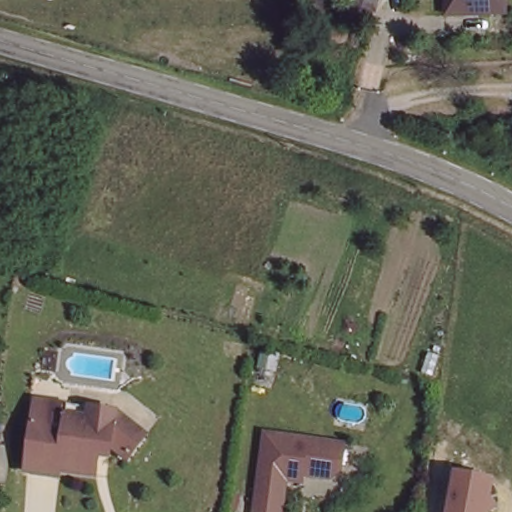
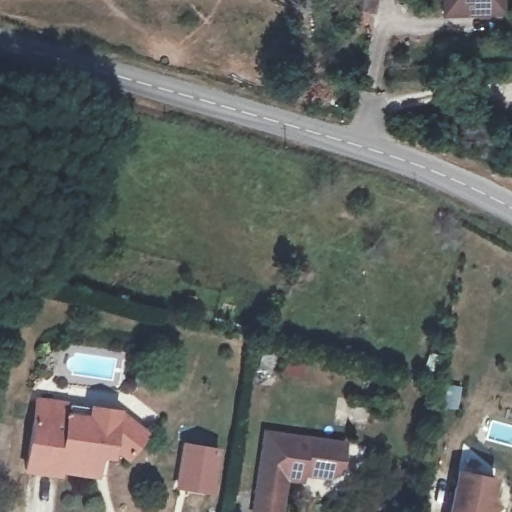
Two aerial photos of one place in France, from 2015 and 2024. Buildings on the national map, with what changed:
unchanged [(444,12),(443,0),(505,0),(505,10),(444,12)]
unchanged [(145,430),(128,455),(113,444),(112,443),(99,443),(97,473),(60,472),(60,475),(26,474),(30,422),(32,401),(64,404),(114,408),(119,412),(145,430)]
unchanged [(340,433),(338,459),(328,467),(308,466),(308,463),(299,463),(299,471),(282,471),(280,511),(253,509),(259,427),(340,433)]
new [(182,441),(222,448),(215,496),(174,489),(182,441)]
unchanged [(493,498),(502,508),(496,512),(446,512),(454,470),(497,476),(493,498)]

